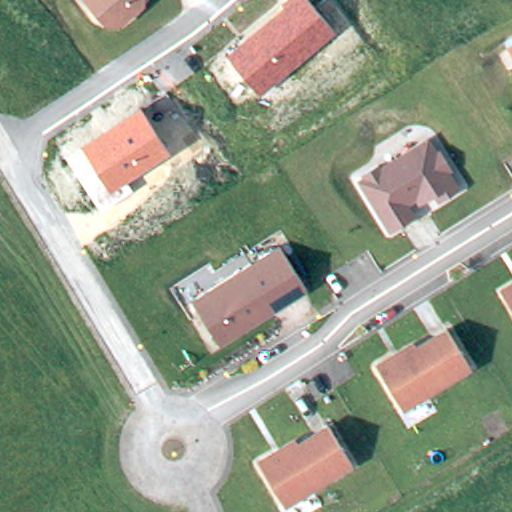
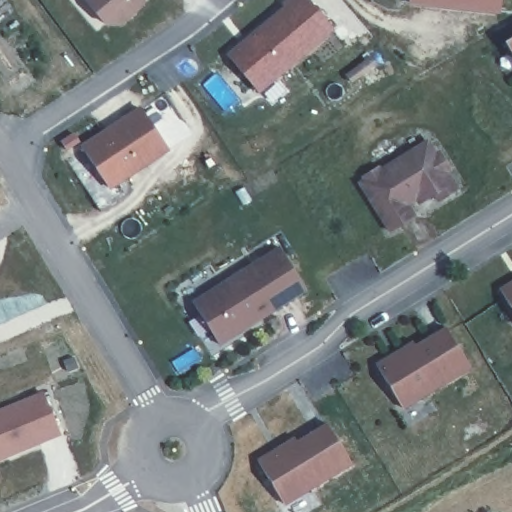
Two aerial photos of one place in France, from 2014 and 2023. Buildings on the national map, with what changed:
unchanged [(145,6),(127,26),(105,25),(85,0),(145,0),(145,6)]
unchanged [(281,2),(284,0),(309,0),(333,30),(257,92),(226,54),(283,6),(281,2)]
new [(408,0),(502,0),(500,15),(408,4),(408,0)]
unchanged [(512,37),(512,54),(505,42),(512,37)]
unchanged [(169,152),(110,190),(80,145),(140,106),(169,152)]
unchanged [(365,180),(363,177),(378,167),(380,171),(427,141),(435,155),(439,152),(450,170),(447,172),(457,189),(439,201),(435,194),(420,204),(416,199),(407,205),(414,217),(390,232),(360,183),(365,180)]
unchanged [(219,345),(192,303),(252,266),(279,249),(280,248),(306,290),(246,327),(235,335),(219,345)]
unchanged [(512,283),(512,310),(500,291),(512,283)]
unchanged [(414,343),(417,347),(447,329),(470,367),(402,408),(377,366),(392,357),(414,343)]
new [(42,391),(60,435),(0,461),(0,409),(42,391)]
unchanged [(352,462),(283,504),(258,462),(274,452),(295,439),(298,443),(328,425),(352,462)]

